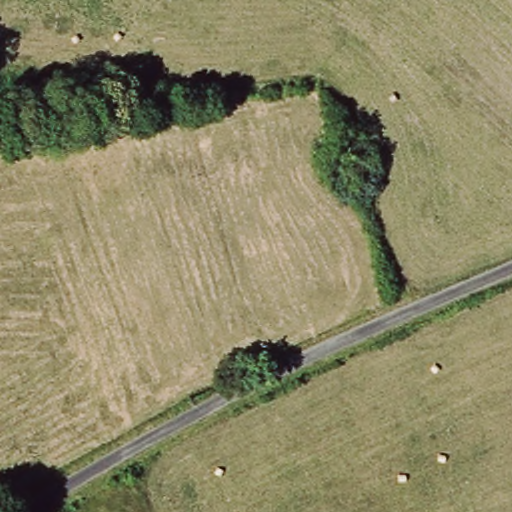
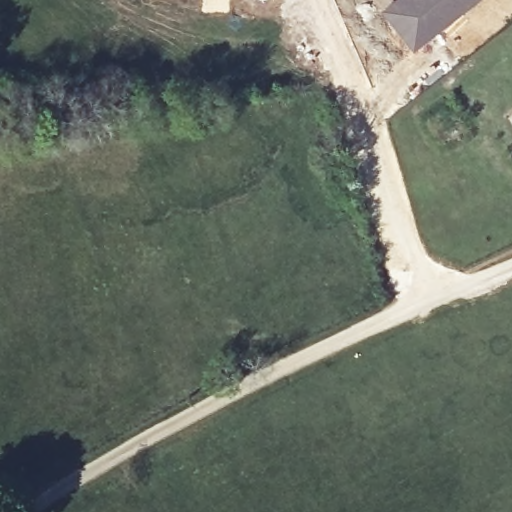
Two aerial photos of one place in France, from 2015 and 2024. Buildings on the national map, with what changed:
new [(391,0),(477,0),(413,51),(380,10),(391,0)]

